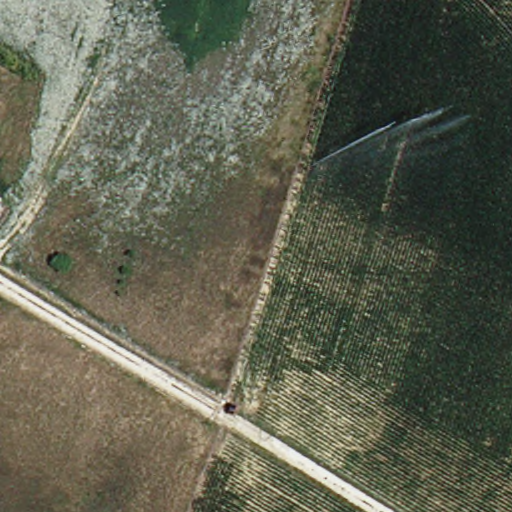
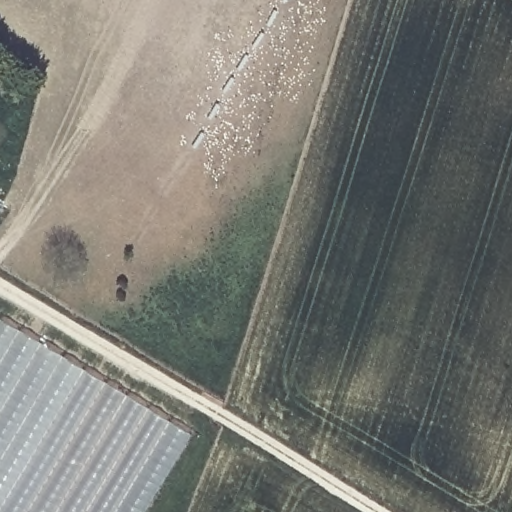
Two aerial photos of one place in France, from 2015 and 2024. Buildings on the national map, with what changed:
unchanged [(0,206),(0,199),(3,201),(0,206)]
new [(190,435),(145,512),(0,512),(0,320),(190,435)]

